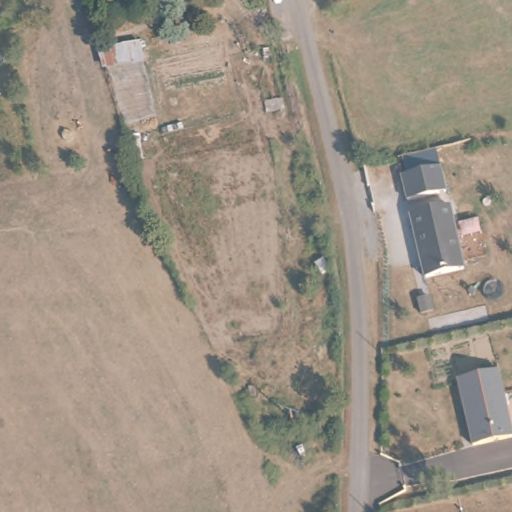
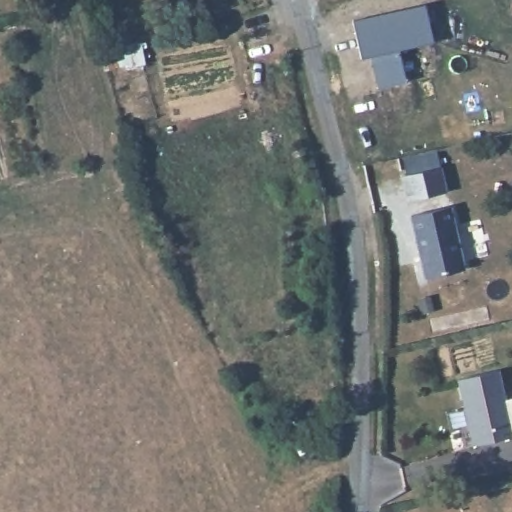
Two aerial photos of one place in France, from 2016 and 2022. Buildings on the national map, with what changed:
new [(399,50),(404,81),(377,87),(370,56),(361,58),(352,20),(424,4),(433,42),(399,50)]
unchanged [(407,202),(401,177),(439,168),(446,192),(407,202)]
unchanged [(449,202),(464,265),(425,274),(410,211),(449,202)]
unchanged [(501,367),(512,424),(512,434),(474,442),(460,375),(501,367)]

